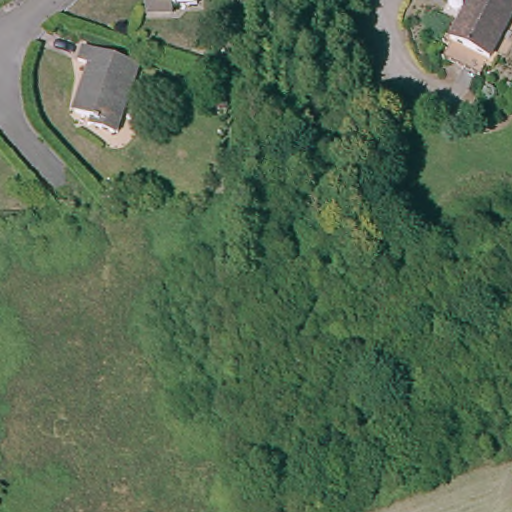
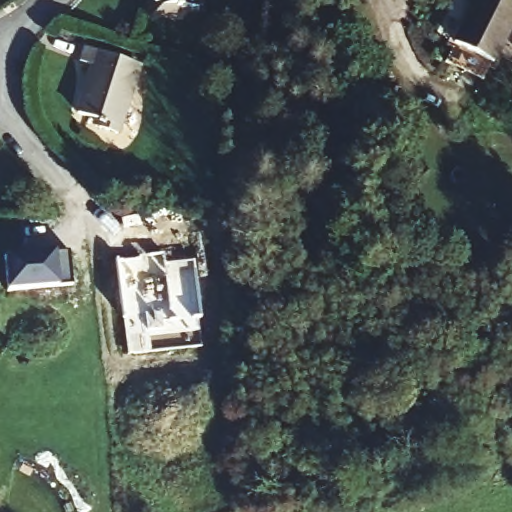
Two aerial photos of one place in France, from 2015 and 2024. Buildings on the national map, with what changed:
unchanged [(198,0),(199,18),(172,20),(172,27),(150,29),(148,0),(198,0)]
unchanged [(459,16),(467,0),(488,0),(511,14),(481,67),(443,46),(459,16)]
unchanged [(137,62),(116,133),(97,127),(100,120),(77,112),(91,71),(93,63),(78,59),(83,46),(137,62)]
new [(67,250),(70,286),(13,292),(10,256),(67,250)]
new [(164,263),(195,260),(201,322),(146,328),(145,315),(122,317),(114,261),(162,254),(164,263)]

